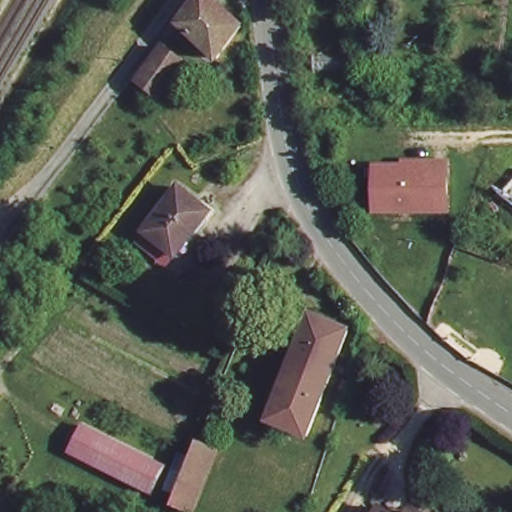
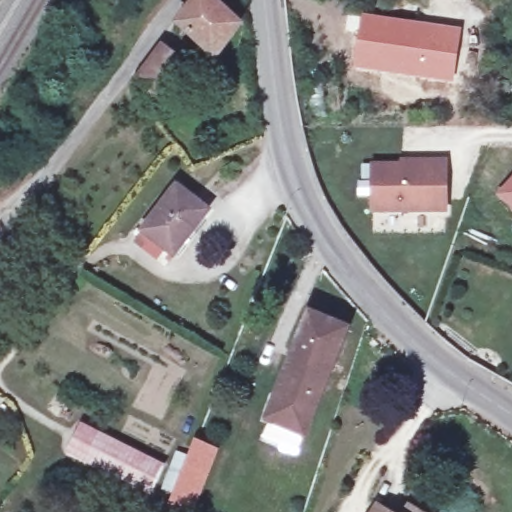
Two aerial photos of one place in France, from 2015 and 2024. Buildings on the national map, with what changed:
unchanged [(220,56),(180,20),(195,0),(213,0),(243,28),(220,56)]
new [(362,14),(462,27),(453,84),(352,68),(362,14)]
unchanged [(164,46),(185,61),(160,94),(147,84),(138,80),(164,46)]
unchanged [(430,168),(430,164),(446,164),(447,213),(374,213),(373,168),(430,168)]
unchanged [(142,235),(152,223),(179,189),(187,179),(217,205),(183,249),(173,261),(142,235)]
unchanged [(498,194),(512,182),(512,206),(498,194)]
unchanged [(286,385),(313,316),(352,331),(325,400),(286,385)]
unchanged [(310,438),(271,421),(286,385),(325,400),(310,438)]
unchanged [(82,426),(165,467),(153,488),(148,497),(137,491),(67,455),(82,426)]
unchanged [(222,451),(200,512),(196,512),(171,505),(194,438),(222,451)]
unchanged [(382,505),(393,512),(378,512),(382,505)]

